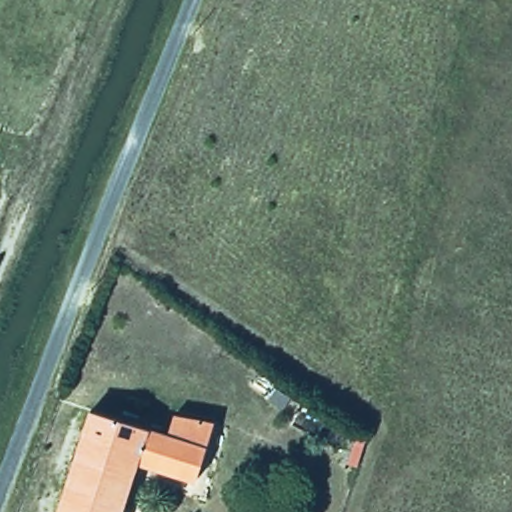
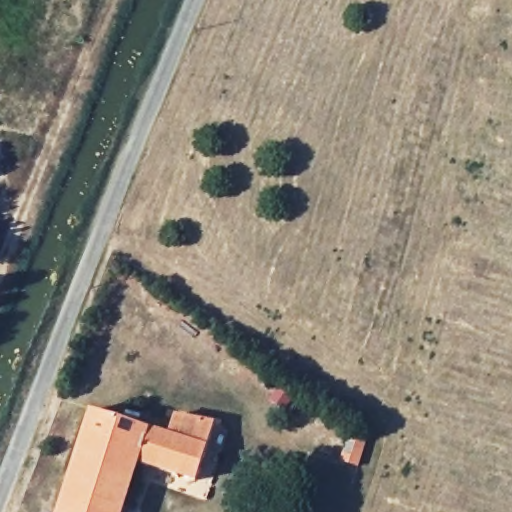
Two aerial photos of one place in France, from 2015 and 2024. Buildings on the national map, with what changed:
unchanged [(92,407),(167,431),(174,411),(225,418),(195,478),(136,458),(119,512),(59,512),(92,407)]

